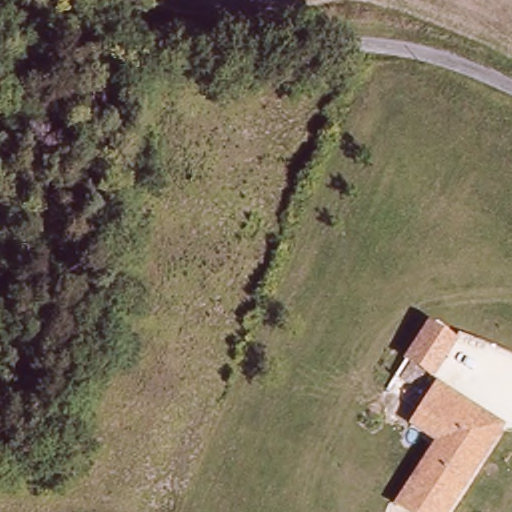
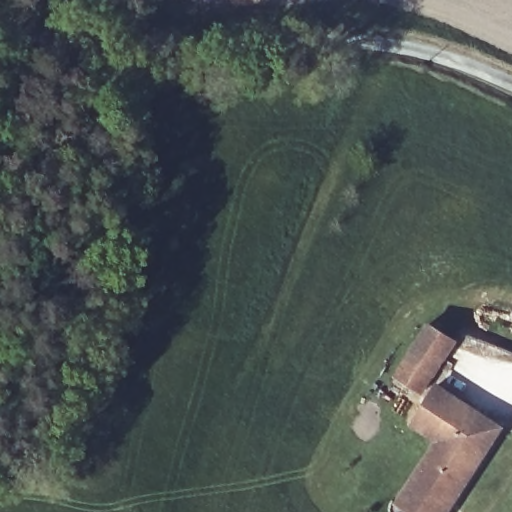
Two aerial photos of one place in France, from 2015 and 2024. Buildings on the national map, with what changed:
unchanged [(457,339),(434,375),(405,358),(428,320),(457,339)]
unchanged [(416,424),(439,385),(478,408),(456,447),(442,439),(416,424)]
unchanged [(481,462),(456,447),(478,408),(504,424),(481,462)]
unchanged [(481,462),(452,512),(416,512),(405,505),(412,492),(442,439),(456,447),(481,462)]

